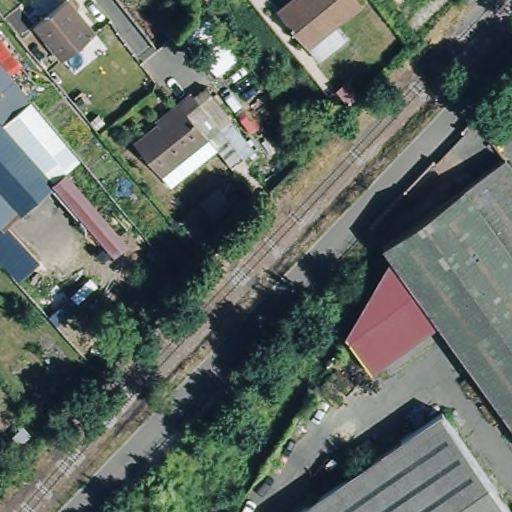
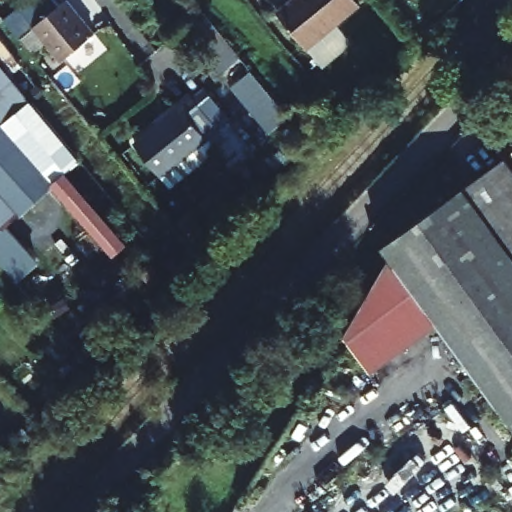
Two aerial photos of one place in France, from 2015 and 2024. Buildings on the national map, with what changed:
unchanged [(312,52),(284,17),(305,0),(358,0),(366,8),(312,52)]
unchanged [(101,39),(69,65),(41,31),(72,5),(101,39)]
unchanged [(34,101),(81,158),(67,168),(129,241),(114,253),(55,184),(22,214),(18,209),(0,224),(0,35),(45,93),(34,101)]
unchanged [(170,184),(143,151),(202,104),(227,137),(170,184)]
unchanged [(441,327),(438,323),(393,260),(384,248),(385,247),(506,159),(512,167),(512,427),(441,327)]
unchanged [(393,260),(438,323),(372,370),(346,335),(393,260)]
demolished [(442,411),(512,512),(299,512),(442,411)]
unchanged [(0,499),(0,489),(5,494),(0,499)]

